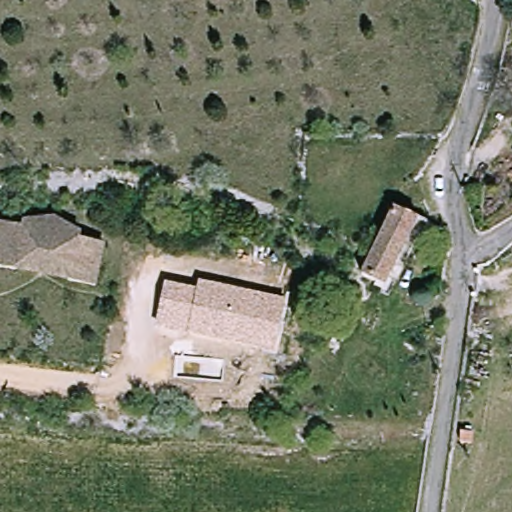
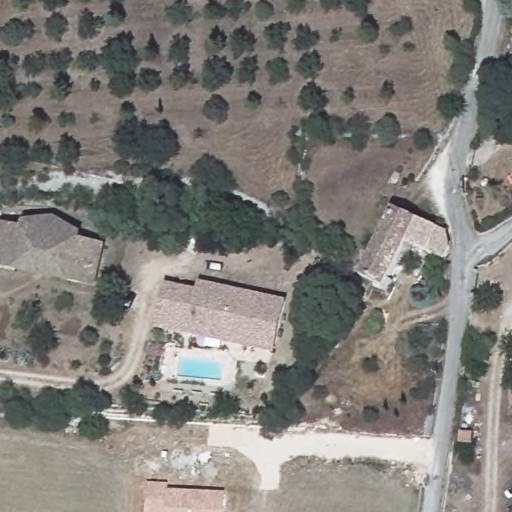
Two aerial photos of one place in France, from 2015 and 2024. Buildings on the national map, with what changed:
unchanged [(386,285),(360,277),(389,213),(394,205),(414,222),(386,285)]
unchanged [(103,244),(96,287),(0,270),(0,224),(22,228),(25,219),(53,216),(79,233),(78,239),(103,244)]
unchanged [(198,290),(199,282),(285,300),(276,352),(157,327),(166,283),(198,290)]
new [(225,495),(224,512),(148,512),(149,485),(169,487),(168,493),(225,495)]

